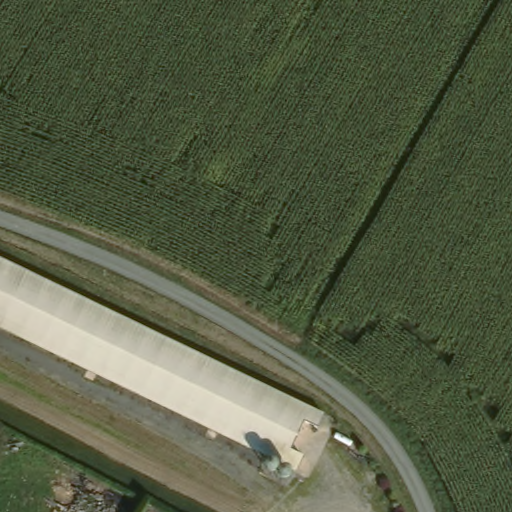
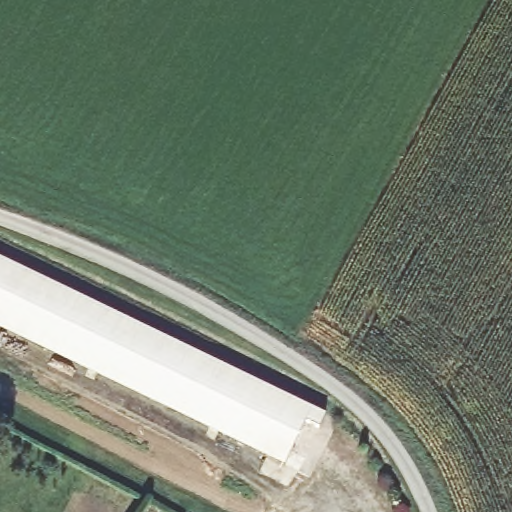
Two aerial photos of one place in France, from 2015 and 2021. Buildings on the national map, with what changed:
unchanged [(0,264),(320,417),(293,477),(0,337),(0,264)]

